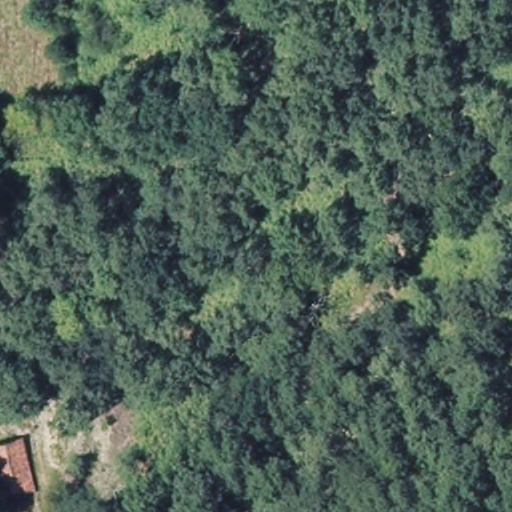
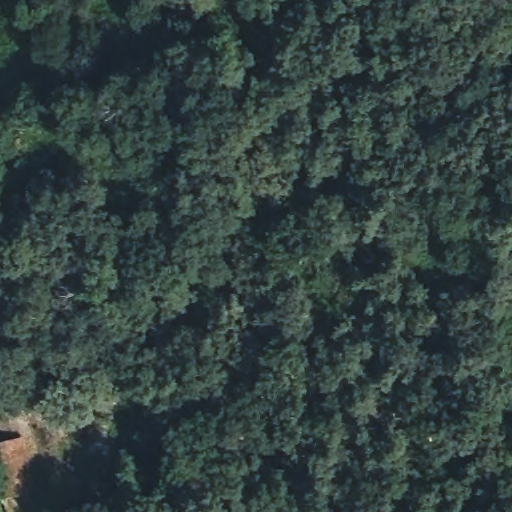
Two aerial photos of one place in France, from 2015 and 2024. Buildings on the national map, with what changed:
unchanged [(0,433),(16,428),(39,505),(16,512),(8,512),(0,482),(0,433)]

